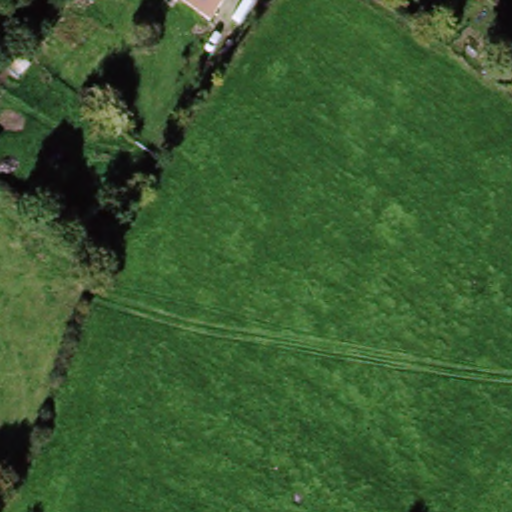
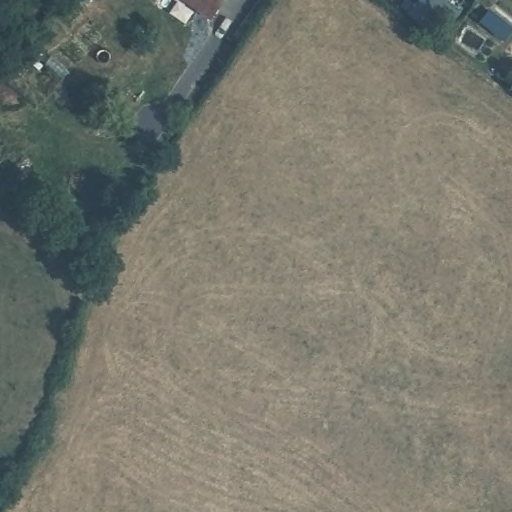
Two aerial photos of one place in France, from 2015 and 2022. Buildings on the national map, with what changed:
unchanged [(173,0),(219,0),(206,21),(173,0)]

